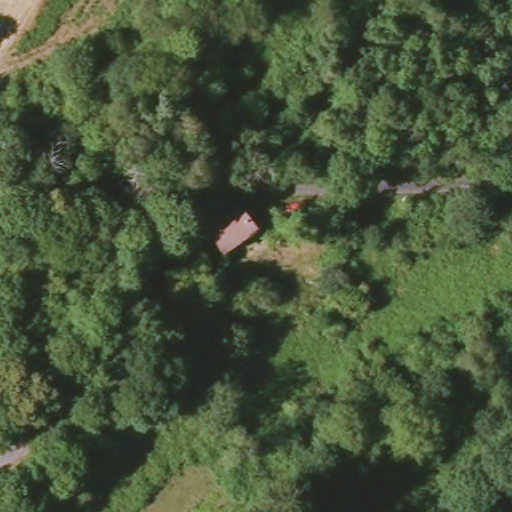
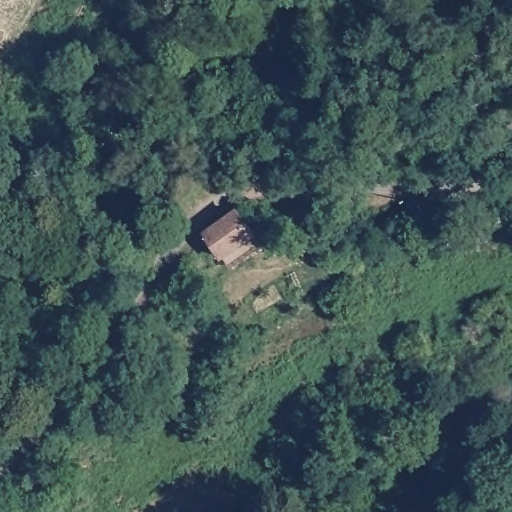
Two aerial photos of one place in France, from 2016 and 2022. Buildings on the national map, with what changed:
unchanged [(237,214),(250,234),(221,255),(208,237),(237,214)]

